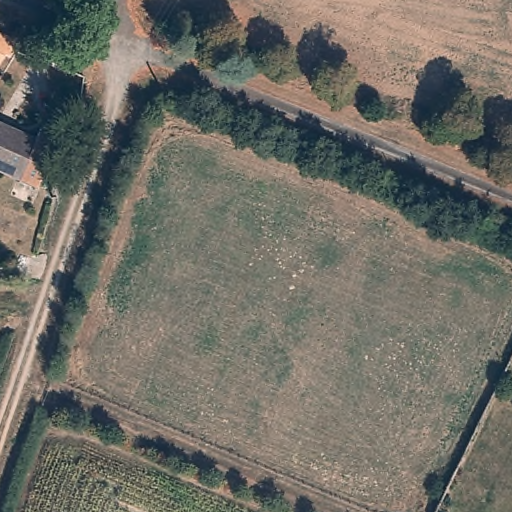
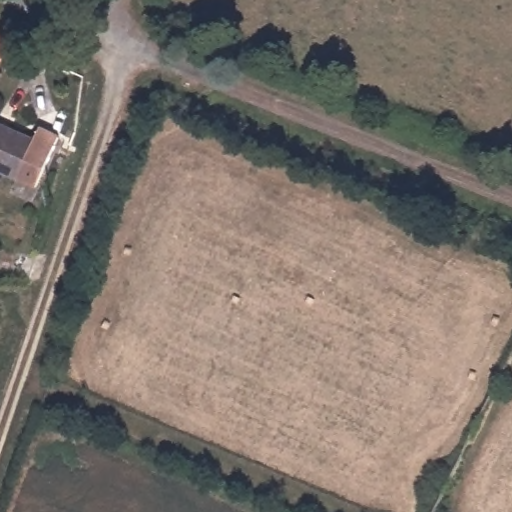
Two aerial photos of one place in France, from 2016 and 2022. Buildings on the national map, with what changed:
unchanged [(0,73),(0,41),(12,47),(0,73)]
unchanged [(0,180),(0,133),(25,144),(28,137),(45,145),(25,190),(0,180)]

